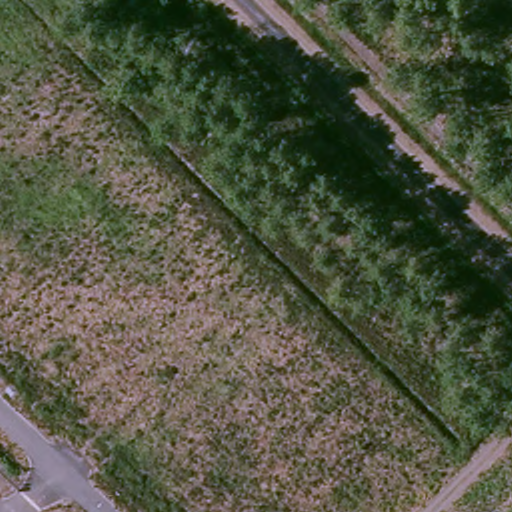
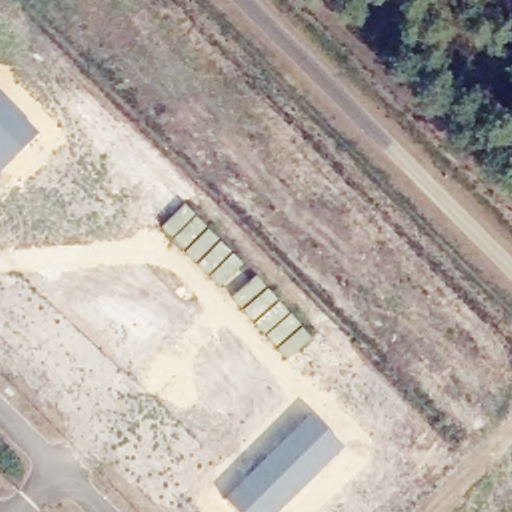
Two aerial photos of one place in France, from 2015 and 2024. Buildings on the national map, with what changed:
new [(37,135),(0,173),(0,96),(37,135)]
new [(309,413),(343,448),(279,512),(237,512),(224,497),(309,413)]

